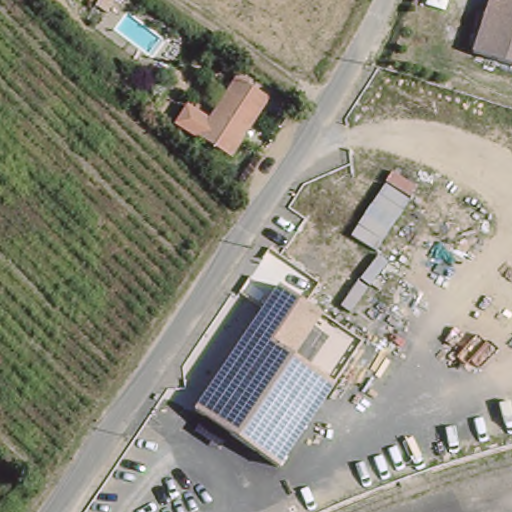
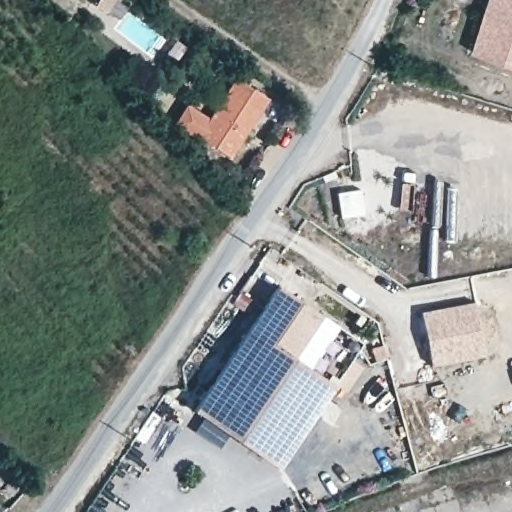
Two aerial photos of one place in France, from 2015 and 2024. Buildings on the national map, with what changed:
unchanged [(489,0),(512,0),(512,64),(473,51),(489,0)]
unchanged [(226,159),(194,133),(174,125),(189,105),(205,119),(232,83),(264,107),(226,159)]
unchanged [(273,291),(358,347),(280,465),(195,409),(273,291)]
new [(434,364),(422,311),(475,301),(485,355),(434,364)]

